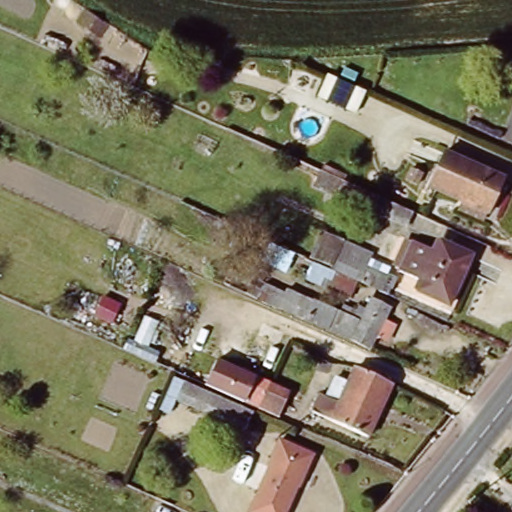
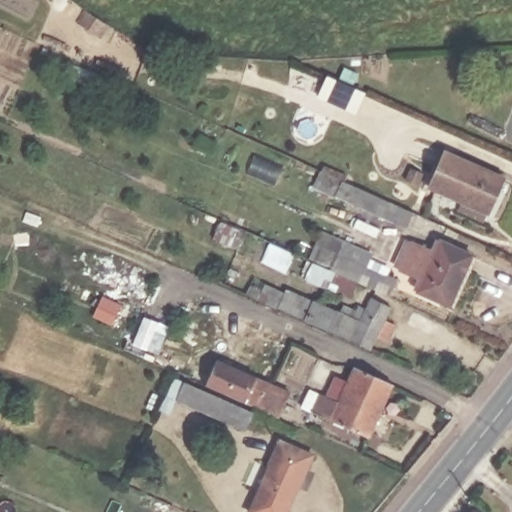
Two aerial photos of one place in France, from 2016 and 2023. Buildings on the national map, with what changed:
unchanged [(502,175),(488,207),(427,181),(442,150),(502,175)]
unchanged [(397,243),(327,212),(336,195),(385,215),(406,225),(397,243)]
unchanged [(312,262),(307,260),(320,230),(374,252),(372,258),(391,266),(389,273),(396,277),(388,296),(357,283),(353,295),(306,276),(312,262)]
unchanged [(467,250),(445,302),(412,287),(417,276),(400,268),(410,245),(428,254),(435,236),(467,250)]
unchanged [(265,280),(339,311),(344,300),(365,309),(370,296),(391,305),(385,320),(395,325),(389,342),(377,336),(370,350),(255,300),(265,280)]
unchanged [(215,354),(289,385),(278,410),(204,377),(215,354)]
unchanged [(396,383),(372,438),(320,417),(329,397),(335,400),(345,378),(357,383),(364,369),(396,383)]
unchanged [(249,405),(242,422),(174,392),(182,375),(249,405)]
unchanged [(310,460),(286,512),(247,512),(280,446),(310,460)]

